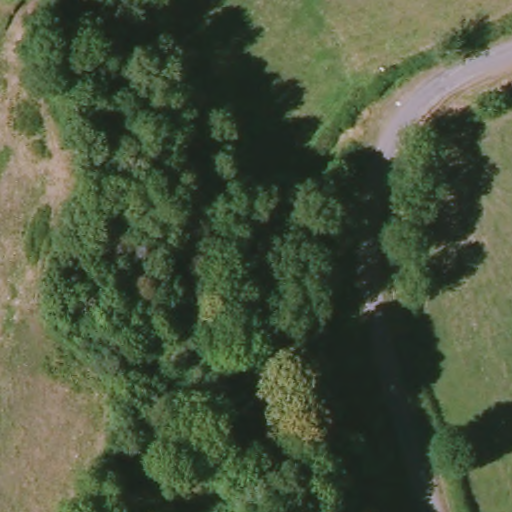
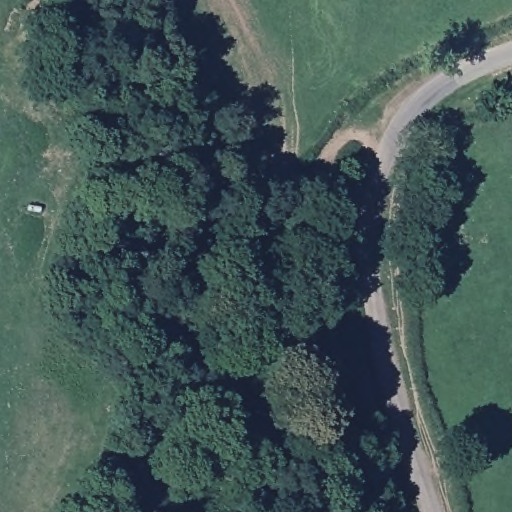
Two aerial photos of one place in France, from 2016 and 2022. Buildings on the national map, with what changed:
[]

